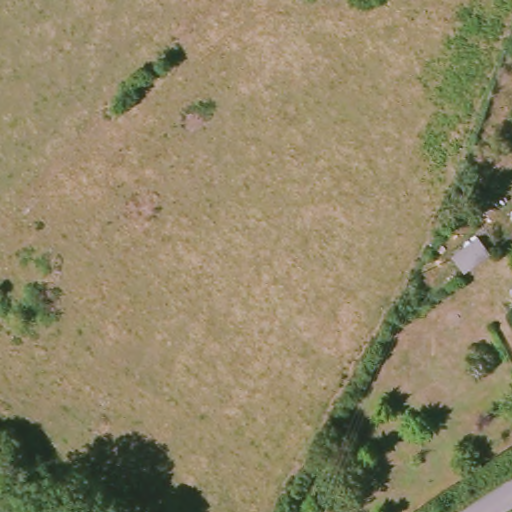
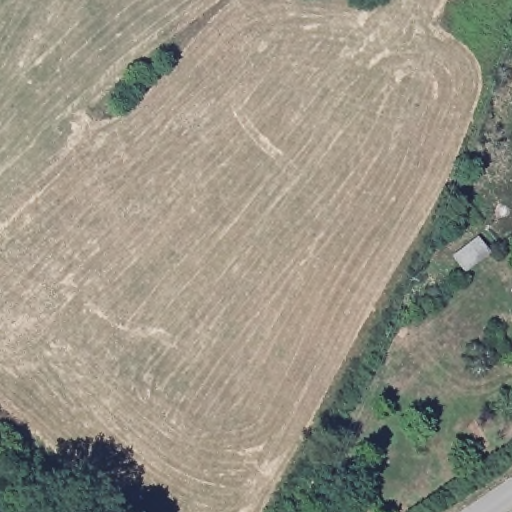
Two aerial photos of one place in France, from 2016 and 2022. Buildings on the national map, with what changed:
unchanged [(464,271),(453,257),(477,238),(487,252),(464,271)]

